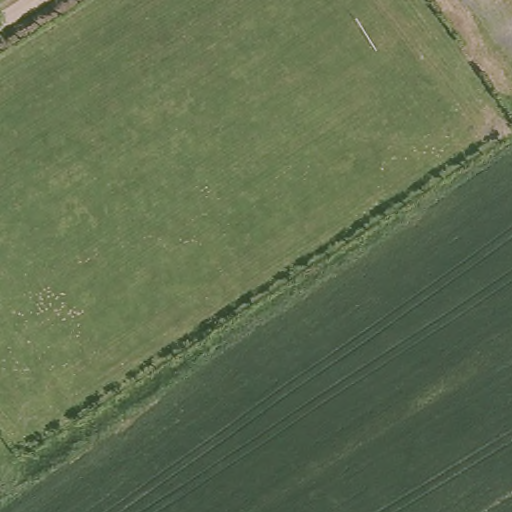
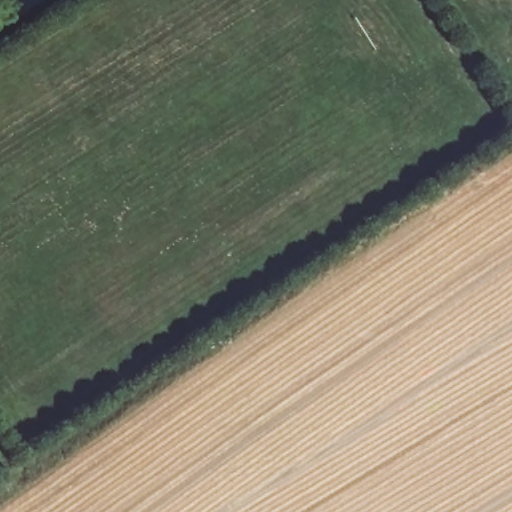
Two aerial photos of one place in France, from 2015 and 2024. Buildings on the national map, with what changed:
[]

